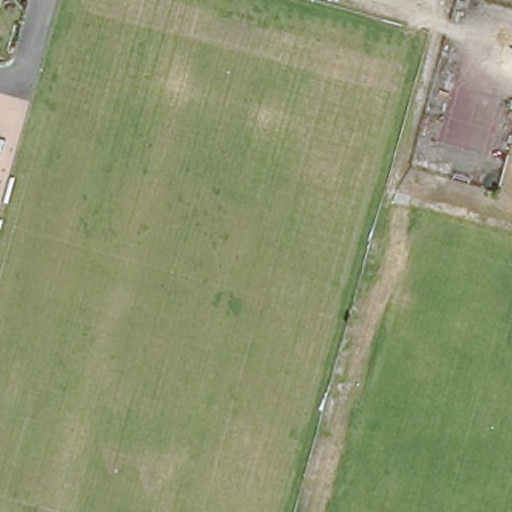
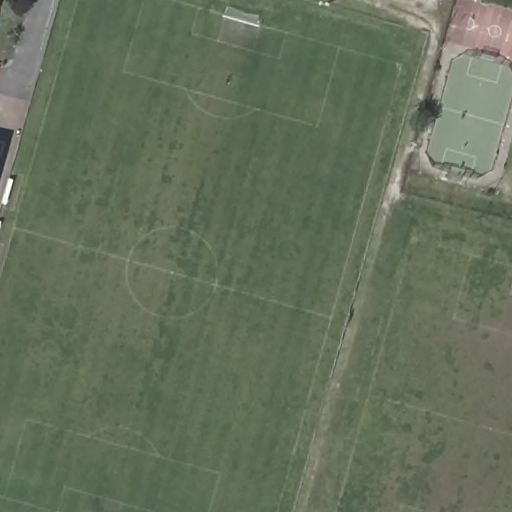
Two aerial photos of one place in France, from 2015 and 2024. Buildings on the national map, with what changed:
unchanged [(0,0),(1,0),(0,4),(0,0)]
unchanged [(0,155),(0,147),(2,148),(0,155)]

